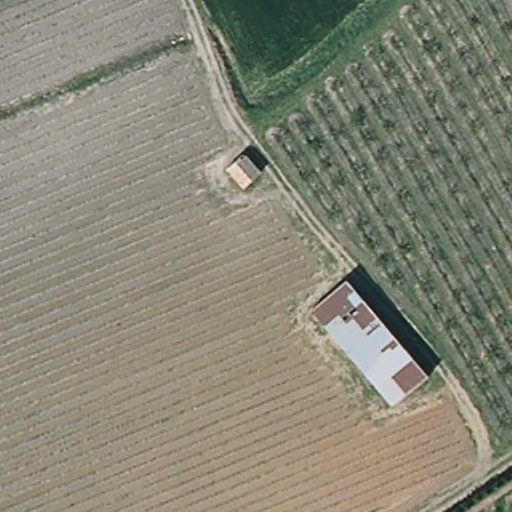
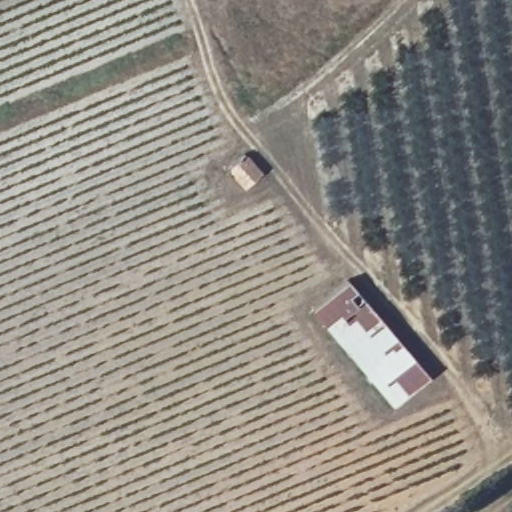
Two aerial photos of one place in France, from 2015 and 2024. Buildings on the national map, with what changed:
unchanged [(259,172),(244,182),(247,186),(245,189),(227,169),(242,153),(259,172)]
unchanged [(429,376),(395,406),(311,310),(347,281),(429,376)]

